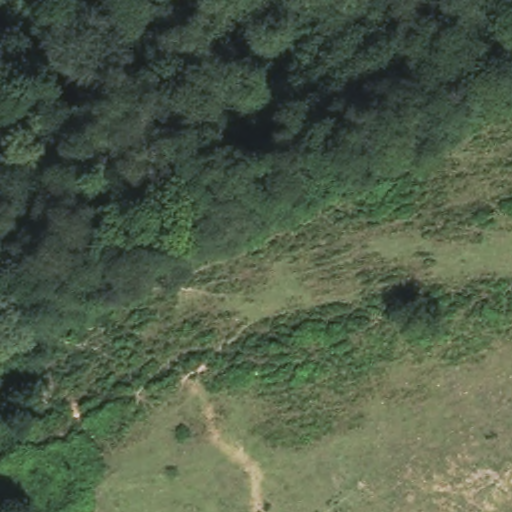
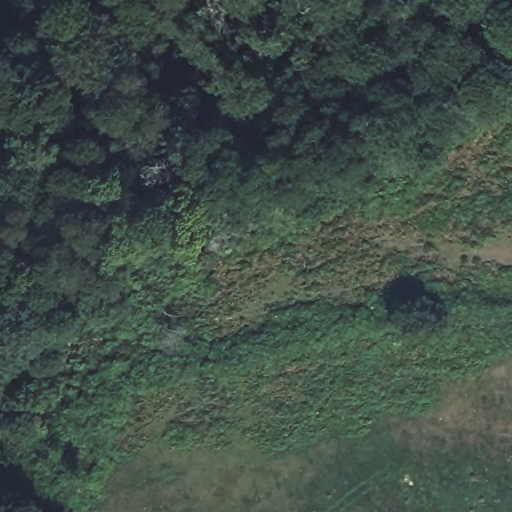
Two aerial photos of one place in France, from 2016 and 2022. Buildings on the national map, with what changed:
unchanged [(30,510),(30,512),(22,512),(30,510)]

